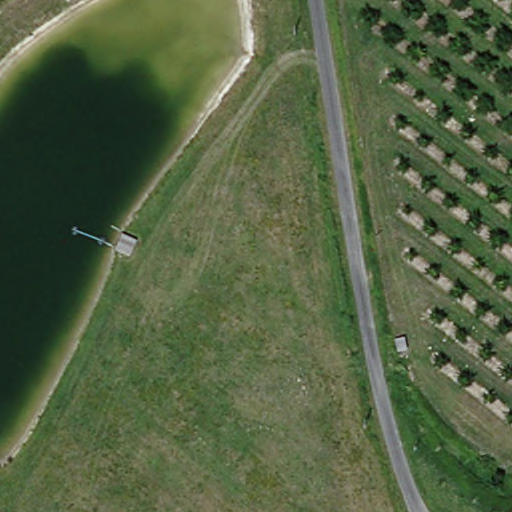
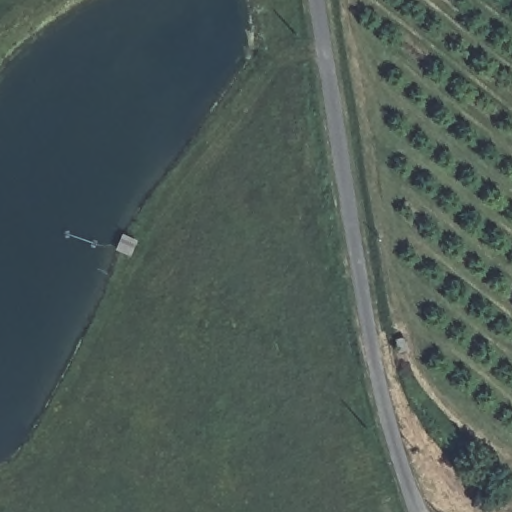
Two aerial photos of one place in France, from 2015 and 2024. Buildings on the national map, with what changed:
[]

